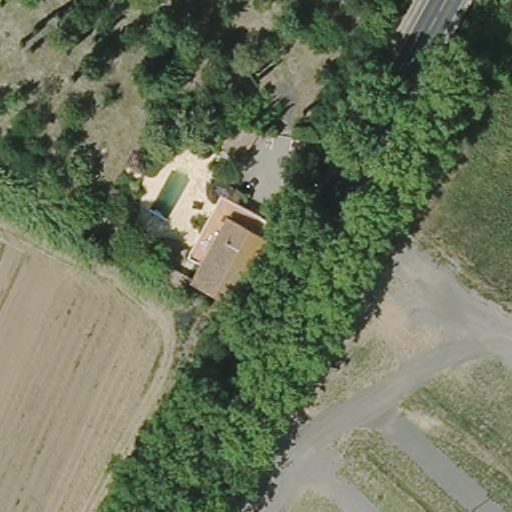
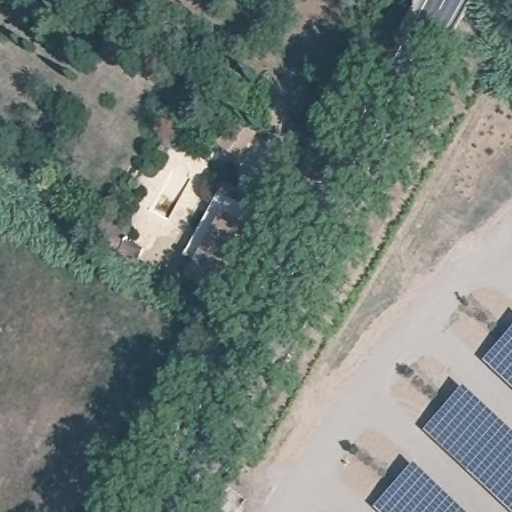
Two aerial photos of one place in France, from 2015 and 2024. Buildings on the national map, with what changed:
unchanged [(265,232),(233,215),(206,264),(193,257),(228,195),(244,204),(273,219),(265,232)]
unchanged [(241,305),(197,281),(206,264),(233,215),(265,232),(277,239),(241,305)]
new [(512,331),(512,384),(486,359),(512,331)]
new [(512,510),(426,430),(466,386),(512,429),(512,510)]
new [(381,512),(375,507),(416,463),(468,512),(381,512)]

